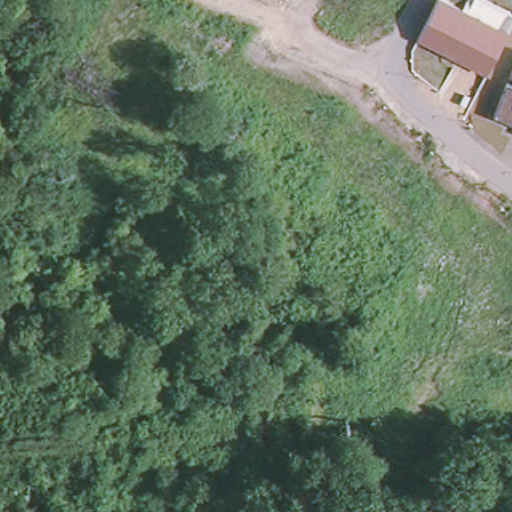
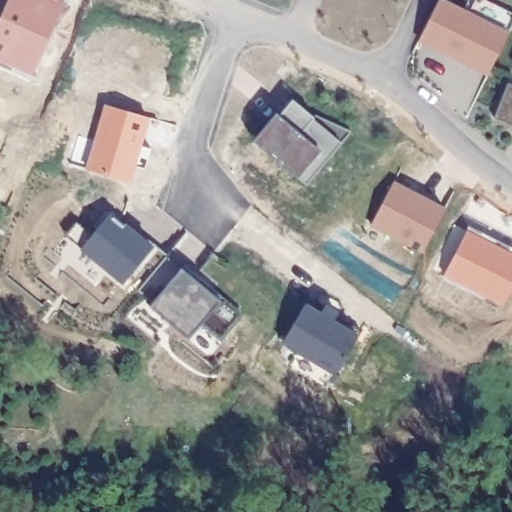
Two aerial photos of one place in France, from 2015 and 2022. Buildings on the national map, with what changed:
new [(37,77),(0,63),(0,21),(8,0),(57,0),(65,3),(37,77)]
unchanged [(438,0),(441,0),(467,13),(474,0),(486,0),(512,13),(512,25),(508,33),(488,74),(419,39),(438,0)]
unchanged [(508,83),(512,85),(512,125),(507,123),(494,118),(508,83)]
new [(312,117),(315,114),(351,131),(306,185),(252,140),(275,113),(280,116),(292,100),(312,117)]
new [(151,117),(134,183),(85,168),(104,106),(151,117)]
new [(152,247),(123,283),(81,250),(112,212),(152,247)]
new [(196,276),(200,269),(217,283),(210,292),(240,314),(222,339),(209,356),(185,335),(150,307),(154,303),(137,291),(169,252),(196,276)]
new [(322,312),(325,304),(338,311),(334,319),(360,335),(337,376),(282,346),(305,303),(322,312)]

